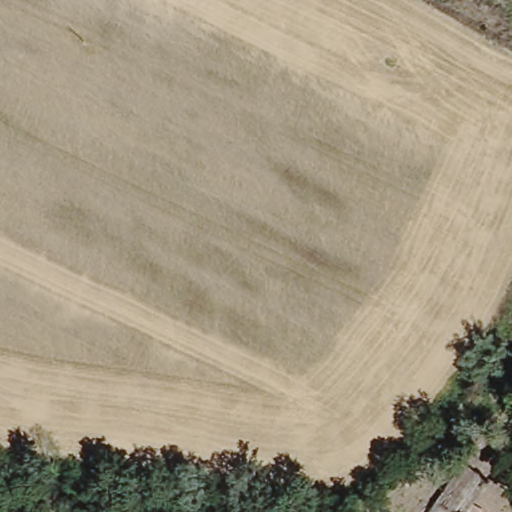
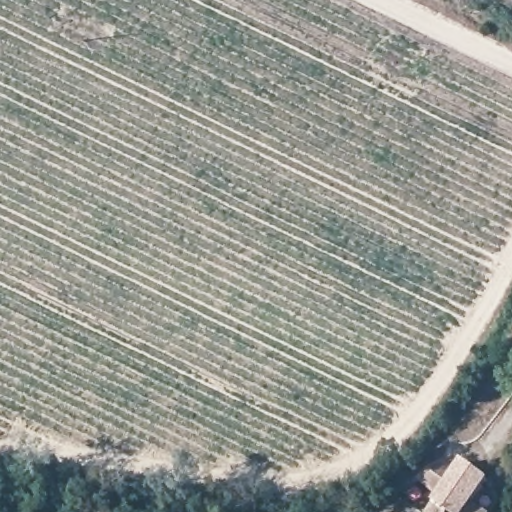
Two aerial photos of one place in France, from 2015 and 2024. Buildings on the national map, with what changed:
new [(491,481),(475,503),(488,512),(428,512),(434,503),(439,497),(418,481),(445,462),(458,470),(463,462),(491,481)]

